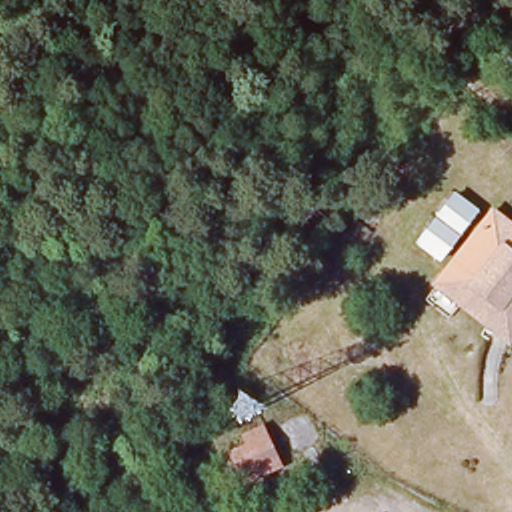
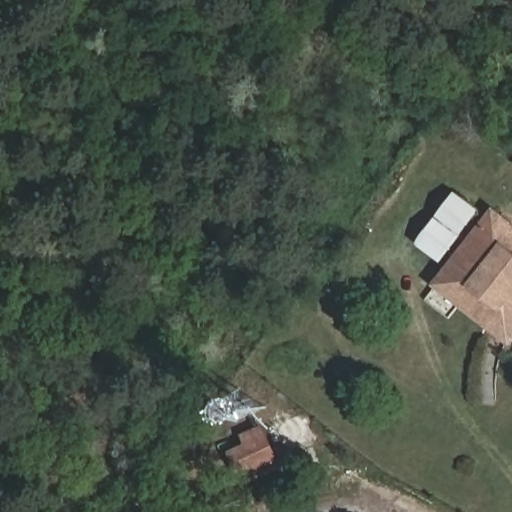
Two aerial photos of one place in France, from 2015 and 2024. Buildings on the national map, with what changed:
unchanged [(512,159),(512,164),(509,162),(512,159)]
unchanged [(416,244),(453,192),(476,208),(439,261),(416,244)]
unchanged [(512,222),(512,234),(479,280),(454,261),(495,209),(512,222)]
unchanged [(438,282),(454,261),(479,280),(512,234),(512,339),(510,340),(438,282)]
unchanged [(243,475),(228,446),(263,425),(288,465),(267,478),(250,490),(243,475)]
unchanged [(315,471),(303,451),(318,441),(331,463),(315,471)]

